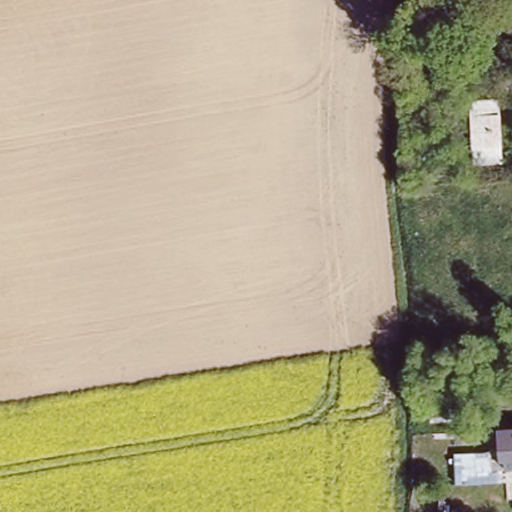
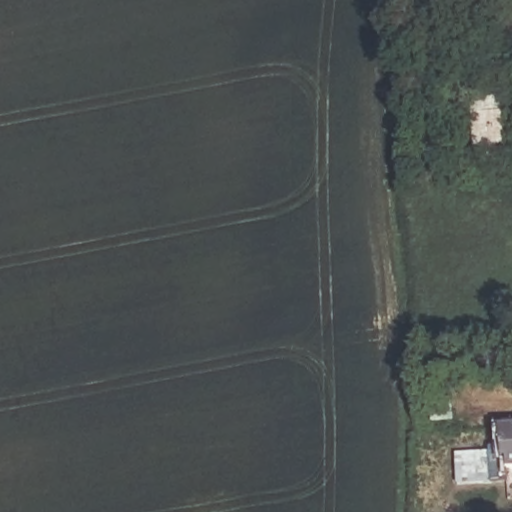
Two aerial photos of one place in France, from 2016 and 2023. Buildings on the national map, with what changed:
unchanged [(477,169),(475,104),(498,103),(500,169),(477,169)]
unchanged [(426,429),(425,410),(447,409),(447,428),(426,429)]
unchanged [(512,466),(496,466),(497,483),(460,484),(459,455),(495,453),(495,444),(500,444),(499,427),(512,427),(512,466)]

